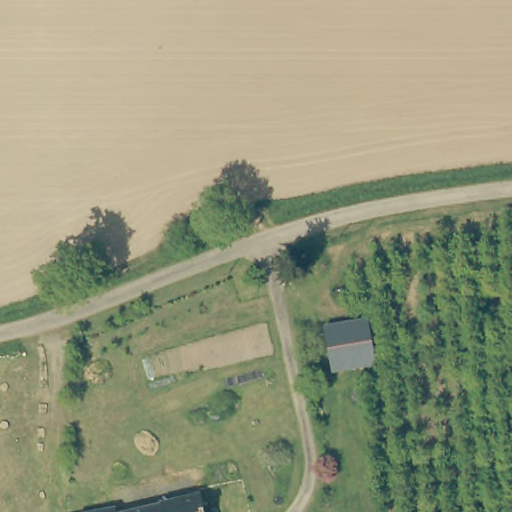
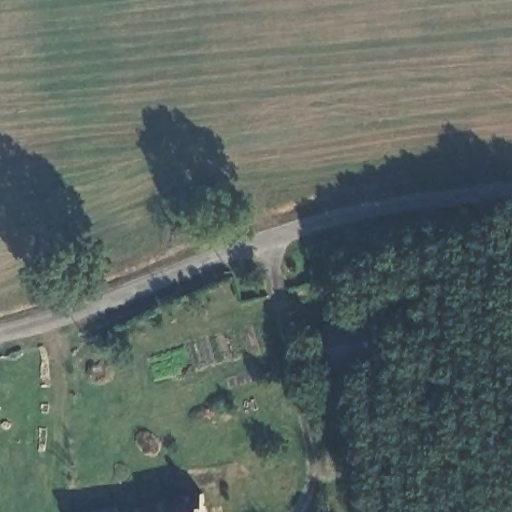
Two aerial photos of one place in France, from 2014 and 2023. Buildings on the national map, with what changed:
new [(368,319),(377,367),(333,375),(325,326),(368,319)]
unchanged [(121,505),(122,510),(205,491),(209,512),(75,512),(121,505)]

